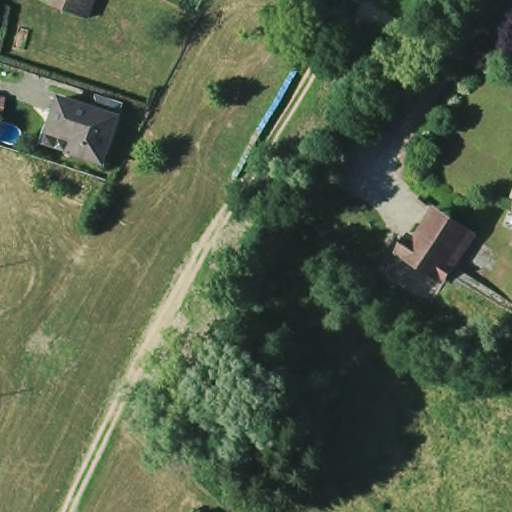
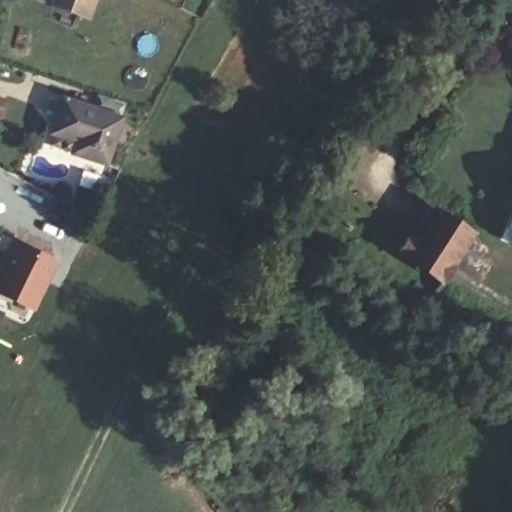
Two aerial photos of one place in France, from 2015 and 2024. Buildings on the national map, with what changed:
unchanged [(54,11),(58,0),(86,0),(79,19),(54,11)]
unchanged [(94,2),(89,0),(94,0),(94,2)]
unchanged [(50,125),(55,127),(65,94),(114,110),(125,113),(109,158),(94,153),(75,147),(47,138),(50,125)]
unchanged [(507,214),(512,204),(512,230),(503,227),(507,214)]
unchanged [(451,265),(413,239),(434,211),(472,235),(451,265)]
unchanged [(512,233),(512,248),(507,245),(512,233)]
unchanged [(440,282),(397,253),(408,236),(413,239),(451,265),(440,282)]
new [(35,311),(0,295),(0,265),(12,238),(58,260),(35,311)]

